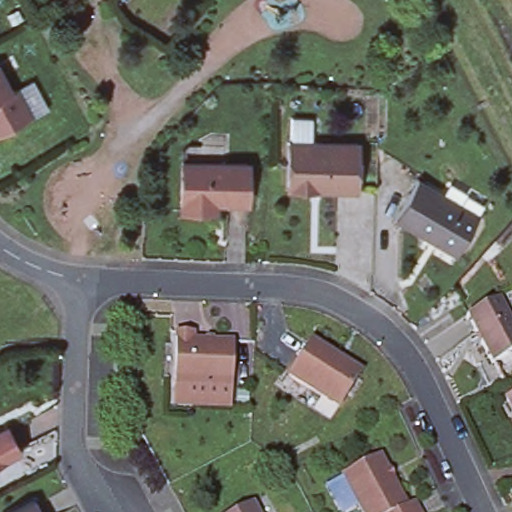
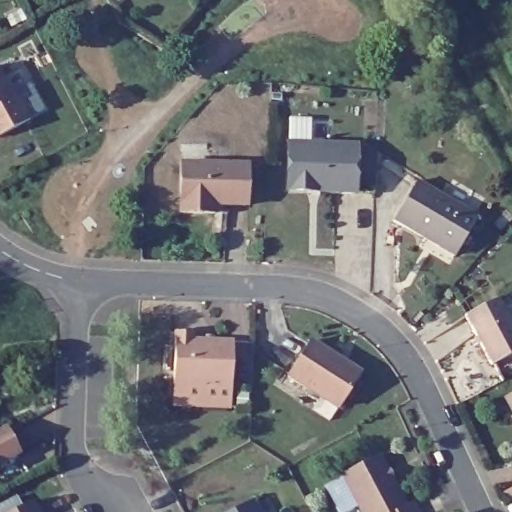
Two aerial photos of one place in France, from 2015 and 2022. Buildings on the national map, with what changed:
unchanged [(13,95),(18,92),(32,84),(48,114),(33,122),(0,139),(0,72),(13,95)]
unchanged [(294,126),(314,126),(313,151),(361,153),(360,198),(291,196),(292,151),(293,151),(294,126)]
unchanged [(252,166),(250,207),(219,205),(219,216),(184,215),(184,165),(252,166)]
unchanged [(394,216),(417,179),(476,214),(454,251),(435,240),(423,233),(394,216)]
unchanged [(512,327),(512,354),(491,365),(466,317),(498,300),(512,327)]
unchanged [(195,324),(195,331),(237,333),(235,378),(176,375),(178,323),(195,324)]
unchanged [(335,353),(334,356),(358,370),(337,404),(288,372),(310,338),(335,353)]
unchanged [(234,397),(175,395),(176,375),(235,378),(234,397)]
unchanged [(510,393),(512,391),(512,396),(510,393)]
unchanged [(10,426),(22,449),(0,461),(0,431),(10,426)]
unchanged [(416,512),(359,512),(340,474),(379,456),(406,507),(412,504),(416,512)]
unchanged [(32,498),(39,512),(3,512),(32,498)]
unchanged [(256,504),(260,512),(239,512),(256,504)]

